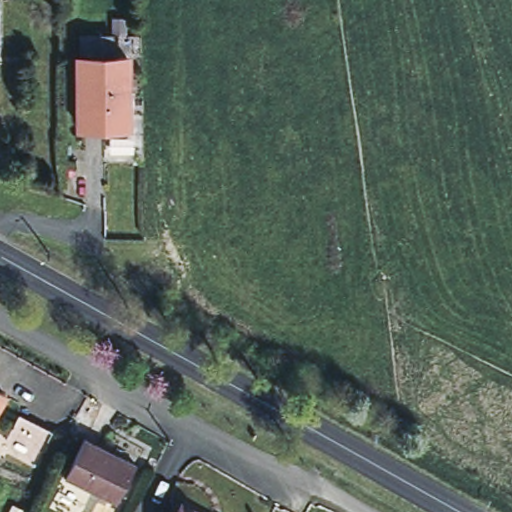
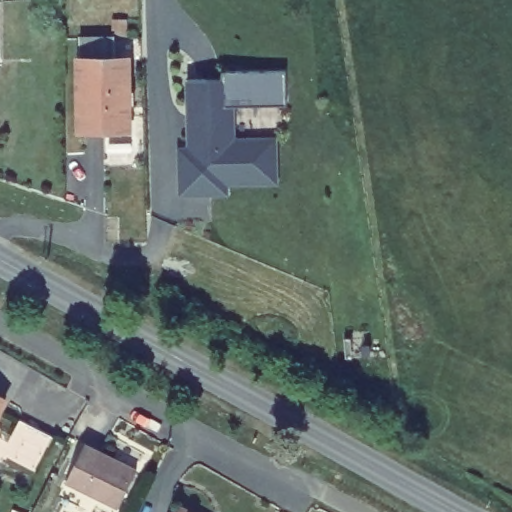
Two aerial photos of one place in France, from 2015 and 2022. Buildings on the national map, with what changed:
unchanged [(124,135),(76,135),(75,64),(75,42),(108,42),(110,64),(122,64),(124,135)]
new [(261,184),(227,185),(227,195),(183,196),(182,152),(190,152),(188,81),(222,80),(222,72),(286,71),(287,106),(233,107),(234,140),(276,139),(276,171),(277,184),(261,184)]
unchanged [(6,400),(0,411),(0,396),(6,400)]
unchanged [(53,438),(35,471),(2,453),(20,420),(53,438)]
unchanged [(138,469),(118,507),(67,481),(85,443),(138,469)]
unchanged [(180,512),(182,508),(189,512),(180,512)]

